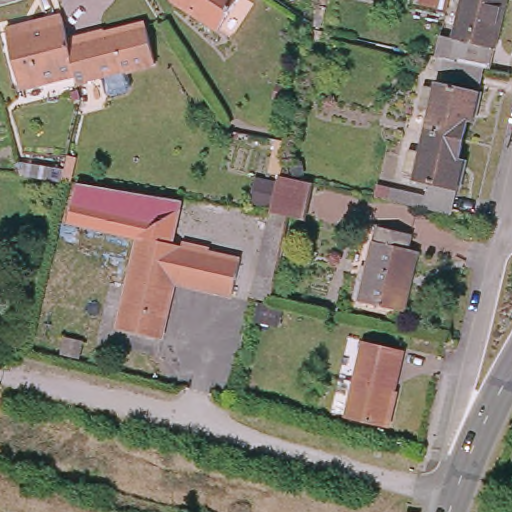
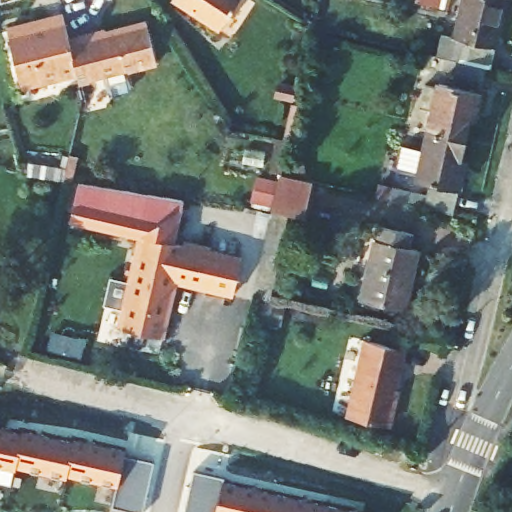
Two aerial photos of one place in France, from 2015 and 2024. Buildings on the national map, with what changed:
unchanged [(191,0),(231,0),(219,19),(191,0)]
unchanged [(484,57),(455,51),(449,50),(435,46),(439,28),(453,31),(459,0),(503,0),(490,59),(484,57)]
unchanged [(64,31),(65,35),(74,64),(17,80),(2,22),(56,6),(64,31)]
unchanged [(83,90),(77,75),(74,64),(65,35),(64,31),(87,25),(90,34),(100,30),(98,25),(138,14),(150,53),(110,65),(115,79),(83,90)]
unchanged [(427,124),(431,101),(420,99),(425,76),(437,79),(437,74),(450,77),(455,51),(484,57),(478,83),(480,84),(475,110),(470,108),(464,132),(427,124)]
unchanged [(459,155),(464,156),(459,183),(457,182),(452,206),(412,196),(391,191),(393,181),(426,190),(430,173),(417,170),(417,166),(407,165),(412,141),(422,144),(427,124),(464,132),(459,155)]
unchanged [(277,172),(307,179),(302,212),(287,209),(265,295),(249,290),(267,209),(277,172)]
unchanged [(174,241),(133,231),(132,238),(68,224),(77,185),(182,202),(175,234),(174,241)]
unchanged [(402,221),(400,235),(413,240),(398,302),(355,292),(374,215),(402,221)]
unchanged [(110,324),(133,231),(174,241),(175,234),(202,241),(200,247),(232,255),(225,291),(191,283),(169,279),(154,335),(110,324)]
unchanged [(395,367),(382,419),(340,408),(359,331),(400,342),(395,367)]
new [(0,463),(0,425),(17,429),(9,462),(10,462),(9,465),(0,463)]
new [(9,462),(17,429),(15,429),(17,426),(68,437),(60,473),(10,462),(9,462)]
new [(61,471),(68,437),(67,437),(68,435),(120,446),(119,451),(149,458),(145,475),(115,468),(112,482),(61,471)]
new [(180,501),(184,484),(187,466),(218,473),(217,478),(267,489),(262,512),(208,512),(213,491),(209,508),(208,512),(178,512),(180,501)]
new [(106,503),(110,486),(111,482),(112,482),(115,468),(145,475),(140,492),(137,510),(106,503)]
new [(316,500),(313,512),(262,512),(267,489),(316,500)]
new [(369,512),(313,512),(316,500),(369,512)]

